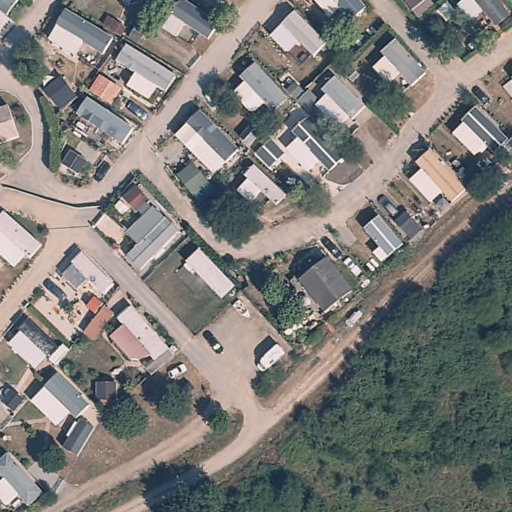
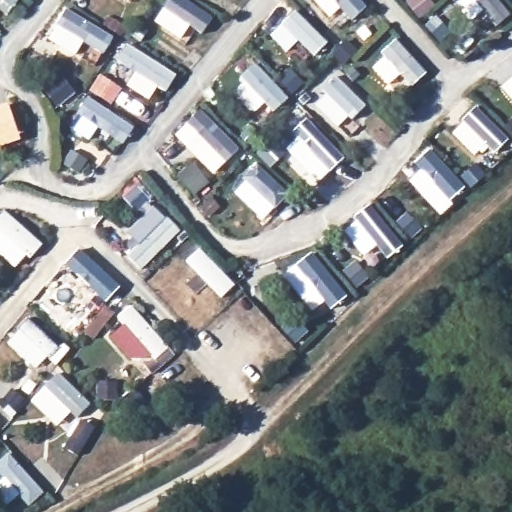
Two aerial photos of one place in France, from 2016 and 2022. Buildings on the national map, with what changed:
unchanged [(9,110),(19,142),(0,146),(0,113),(9,110)]

